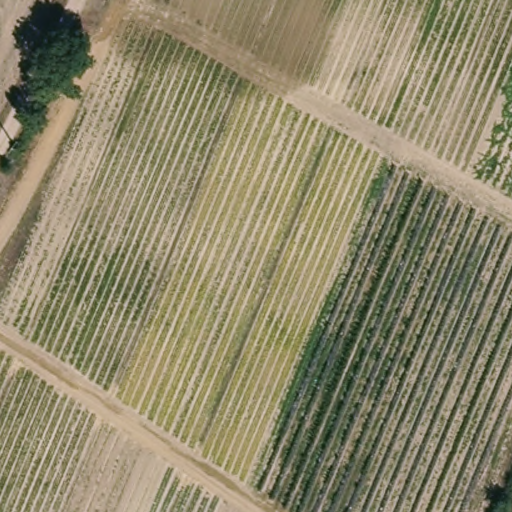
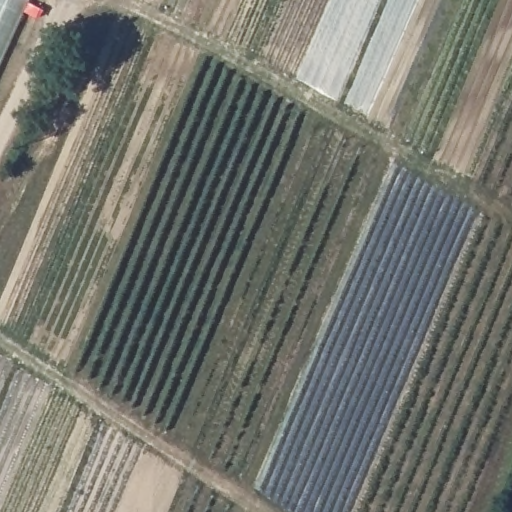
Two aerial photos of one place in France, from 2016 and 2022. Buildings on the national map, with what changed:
new [(30,0),(0,65),(0,0),(30,0)]

